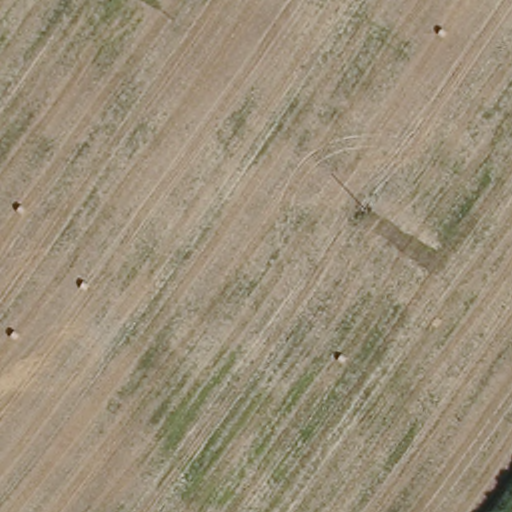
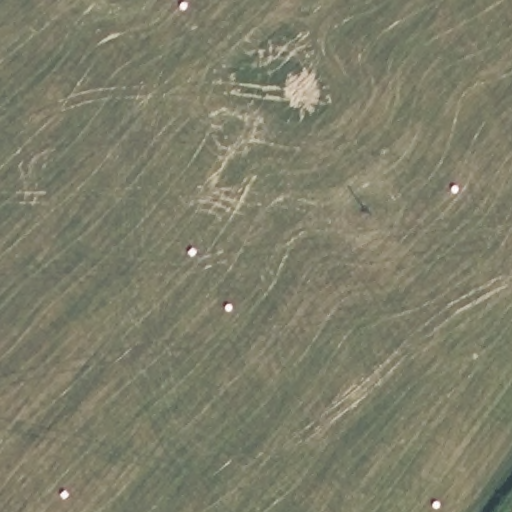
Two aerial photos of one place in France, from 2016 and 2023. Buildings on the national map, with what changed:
[]

